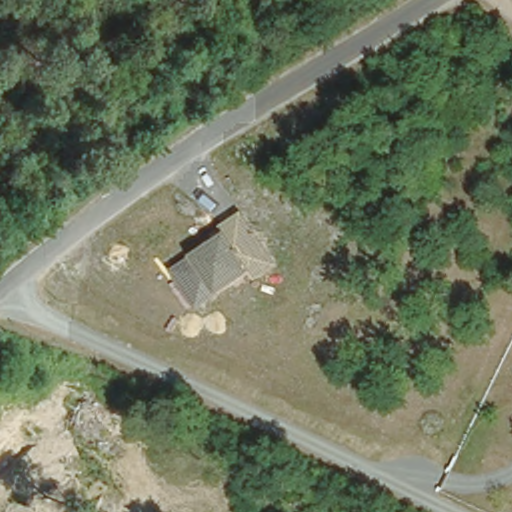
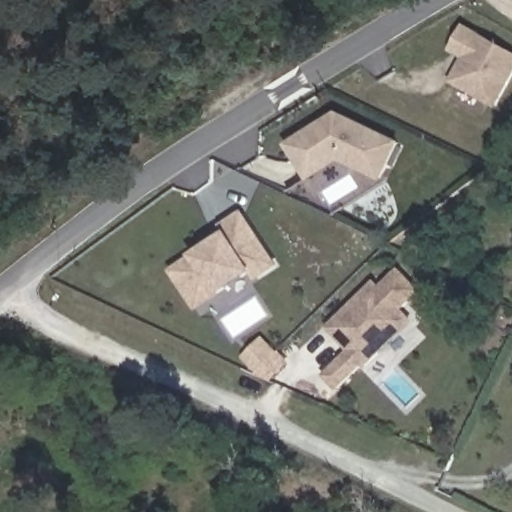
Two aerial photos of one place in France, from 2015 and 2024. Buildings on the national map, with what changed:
new [(512,50),(512,79),(496,108),(450,81),(463,59),(449,51),(464,24),(512,50)]
new [(330,112),(390,141),(373,176),(333,156),(302,176),(281,142),(330,112)]
unchanged [(257,272),(222,295),(197,310),(171,268),(195,254),(229,232),(223,225),(245,211),(281,266),(258,280),(257,272)]
new [(327,328),(376,280),(380,286),(400,268),(421,291),(404,309),(415,321),(366,368),(363,366),(338,391),(324,376),(349,350),(327,328)]

